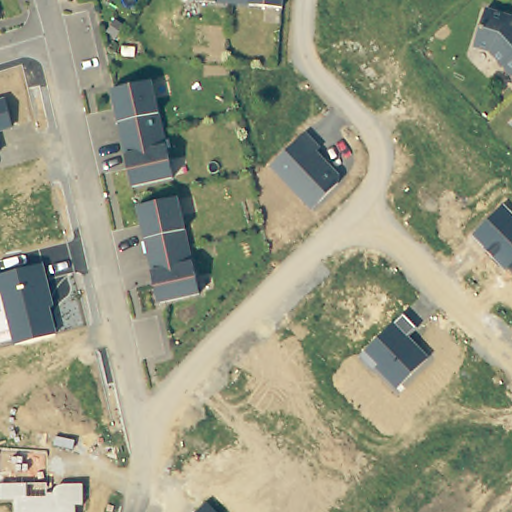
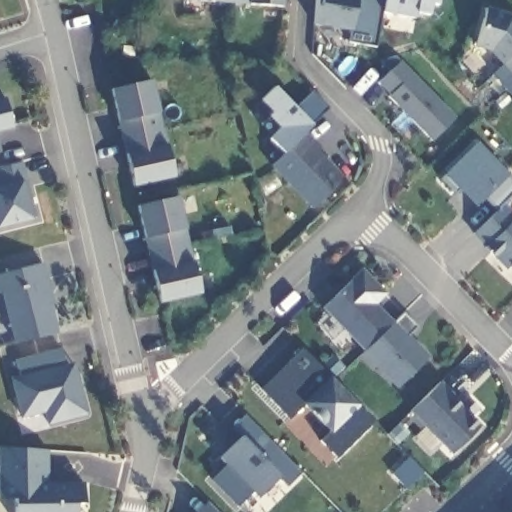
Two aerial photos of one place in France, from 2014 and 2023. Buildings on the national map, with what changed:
unchanged [(282,7),(190,0),(283,0),(282,7)]
unchanged [(351,32),(311,25),(315,0),(357,0),(351,32)]
new [(438,7),(431,6),(430,15),(416,12),(414,19),(382,14),(375,49),(350,45),(351,32),(357,0),(440,0),(438,7)]
unchanged [(490,46),(474,41),(486,4),(512,12),(512,70),(490,46)]
new [(457,118),(431,141),(374,86),(400,61),(457,118)]
unchanged [(133,187),(111,90),(132,85),(152,81),(174,178),(133,187)]
new [(282,155),(267,139),(278,127),(266,118),(259,101),(273,87),(311,126),(305,134),(282,155)]
new [(312,91),(330,108),(311,126),(294,109),(312,91)]
unchanged [(11,128),(0,131),(0,100),(3,100),(11,128)]
unchanged [(270,167),(305,134),(319,148),(316,152),(341,181),(312,212),(270,167)]
new [(496,212),(484,200),(475,208),(458,191),(455,194),(441,180),(478,142),(509,175),(507,177),(512,182),(512,196),(501,207),(496,212)]
new [(0,228),(0,186),(13,183),(8,165),(23,162),(37,218),(0,228)]
unchanged [(178,197),(200,294),(161,303),(159,303),(137,206),(178,197)]
unchanged [(474,237),(501,207),(512,217),(512,271),(474,237)]
unchanged [(0,293),(0,275),(43,265),(53,305),(49,311),(55,335),(14,346),(1,293),(0,293)]
new [(366,353),(321,309),(362,268),(387,294),(376,305),(395,323),(366,353)]
unchanged [(364,355),(402,316),(417,331),(409,340),(428,357),(397,390),(364,355)]
new [(47,426),(44,414),(21,420),(10,378),(21,375),(15,359),(60,349),(65,365),(74,363),(88,415),(47,426)]
new [(374,423),(337,458),(320,440),(328,433),(304,406),(289,419),(260,390),(301,349),(374,423)]
unchanged [(440,382),(461,404),(467,397),(479,409),(472,416),(482,426),(451,455),(409,412),(440,382)]
new [(286,488),(278,480),(257,499),(250,493),(238,507),(210,480),(225,466),(218,458),(241,436),(259,456),(269,440),(302,471),(286,488)]
unchanged [(0,500),(0,447),(48,450),(48,483),(83,483),(83,504),(75,504),(76,512),(14,512),(13,500),(0,500)]
demolished [(411,494),(433,473),(441,481),(466,457),(501,493),(481,512),(408,512),(418,503),(411,494)]
demolished [(512,473),(512,482),(506,488),(498,481),(501,478),(509,470),(512,473)]
unchanged [(215,512),(197,512),(206,503),(215,512)]

